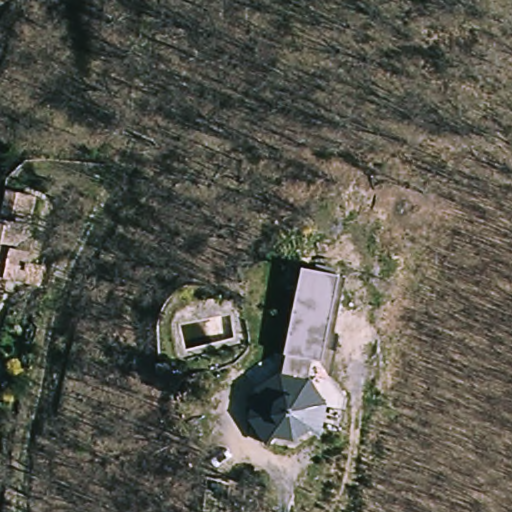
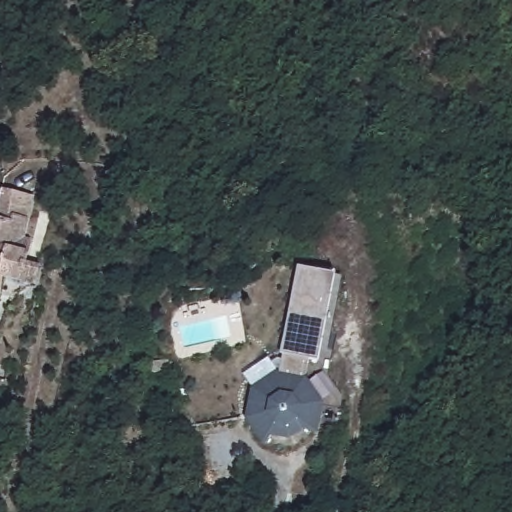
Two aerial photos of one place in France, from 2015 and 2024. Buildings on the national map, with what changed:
unchanged [(24,204),(18,226),(24,229),(20,248),(28,249),(20,286),(0,282),(0,217),(5,199),(24,204)]
unchanged [(322,404),(316,435),(306,429),(304,431),(289,442),(286,440),(269,438),(263,446),(245,421),(251,392),(274,374),(278,375),(283,355),(280,353),(296,268),(335,276),(317,362),(308,361),(305,379),(322,404)]

